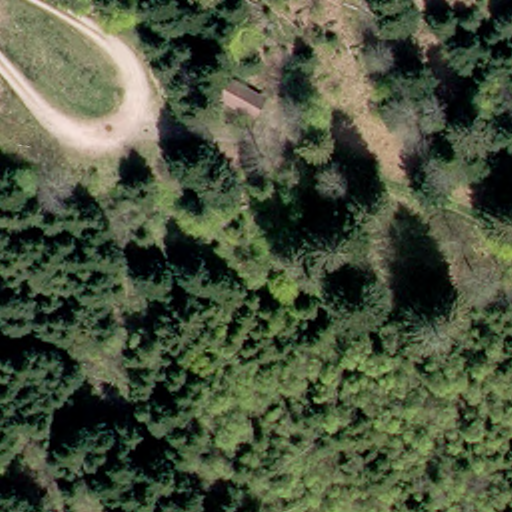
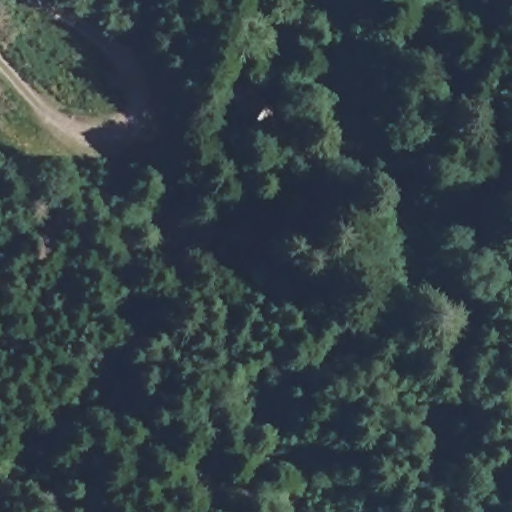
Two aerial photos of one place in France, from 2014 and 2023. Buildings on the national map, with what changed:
unchanged [(226,75),(264,96),(254,119),(211,93),(226,75)]

